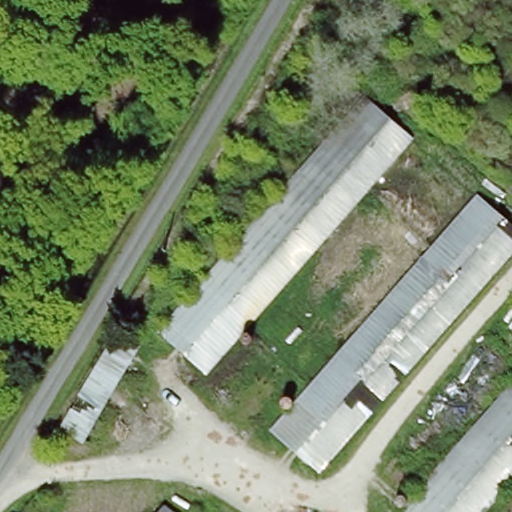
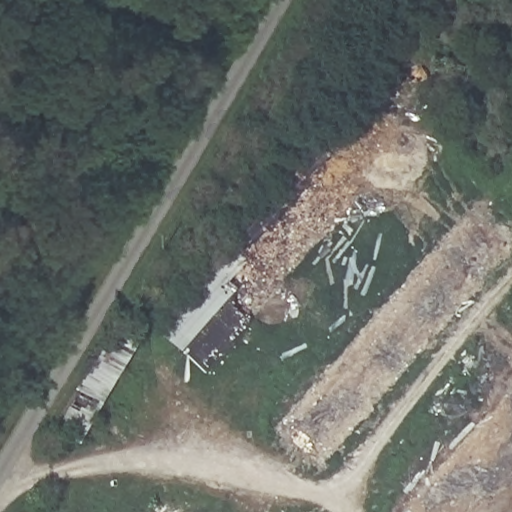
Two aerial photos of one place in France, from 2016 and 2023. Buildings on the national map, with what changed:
demolished [(365,95),(414,139),(209,372),(162,331),(365,95)]
demolished [(471,199),(512,235),(512,251),(317,475),(270,433),(471,199)]
demolished [(84,445),(56,431),(112,330),(139,345),(84,445)]
demolished [(512,381),(512,478),(482,512),(398,512),(512,381)]
unchanged [(172,512),(160,512),(165,506),(172,512)]

